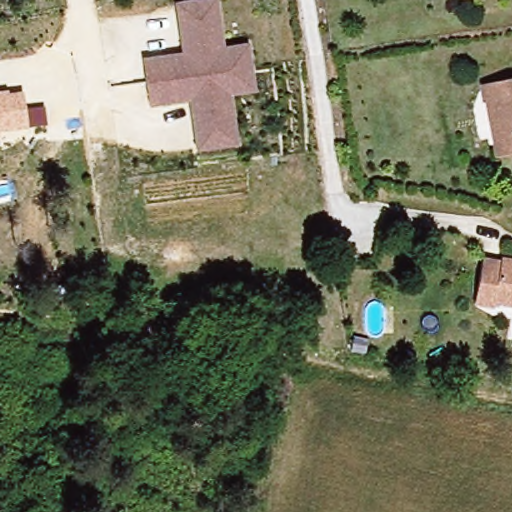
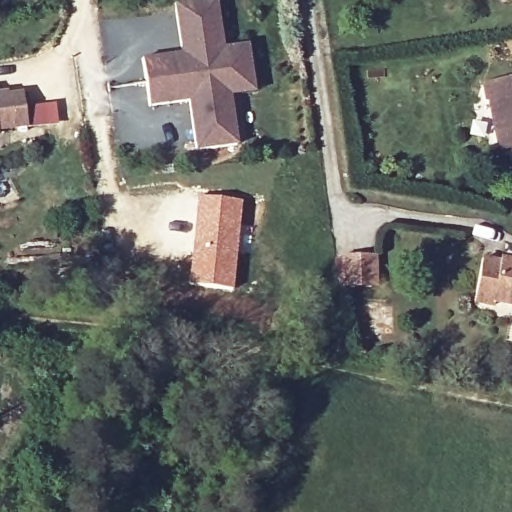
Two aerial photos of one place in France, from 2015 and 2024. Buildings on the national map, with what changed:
unchanged [(190,101),(147,107),(142,58),(182,52),(175,1),(182,0),(218,0),(223,45),(248,42),(255,92),(233,96),(239,145),(197,152),(190,101)]
unchanged [(497,157),(487,99),(485,100),(482,83),(512,78),(512,154),(497,157)]
unchanged [(10,96),(22,94),(27,128),(0,132),(0,91),(10,90),(10,96)]
new [(198,195),(243,200),(234,290),(187,286),(198,195)]
demolished [(400,232),(438,234),(438,246),(423,246),(423,256),(398,256),(400,232)]
new [(368,257),(370,289),(339,290),(337,258),(368,257)]
unchanged [(472,302),(482,264),(501,268),(502,262),(512,264),(512,306),(495,302),(493,307),(492,313),(471,308),(472,302)]

